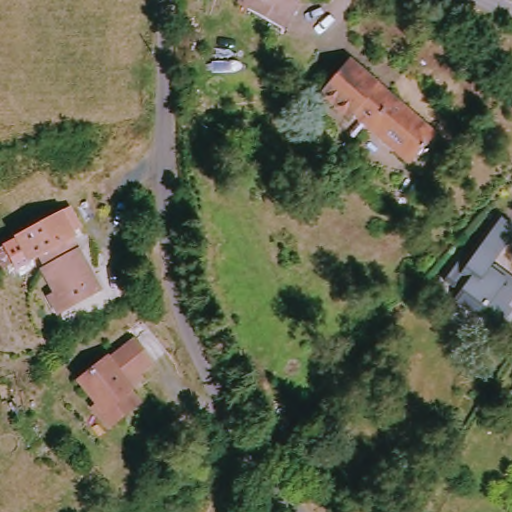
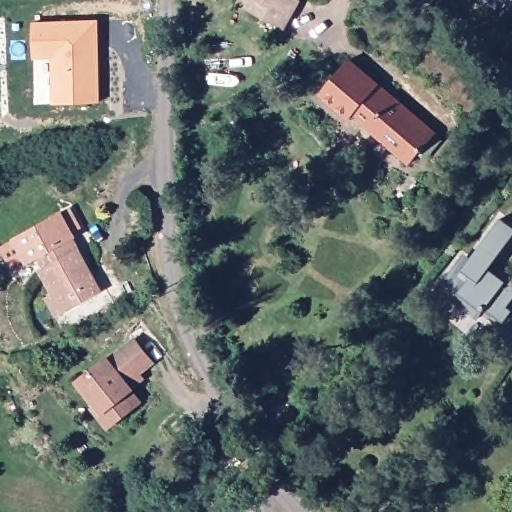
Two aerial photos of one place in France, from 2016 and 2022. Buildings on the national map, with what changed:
unchanged [(279,28),(241,8),(235,5),(238,0),(293,0),(279,28)]
new [(34,59),(34,22),(98,22),(100,102),(53,102),(51,60),(34,59)]
unchanged [(351,122),(319,93),(349,61),(436,136),(411,165),(372,133),(356,118),(351,122)]
unchanged [(55,213),(68,237),(65,239),(93,289),(58,308),(31,258),(22,262),(9,237),(55,213)]
unchanged [(504,277),(512,282),(512,292),(504,306),(510,311),(503,322),(496,316),(493,321),(481,312),(475,320),(454,305),(460,295),(443,284),(452,268),(459,273),(479,241),(494,219),(507,229),(494,251),(485,267),(502,280),(504,277)]
unchanged [(86,409),(91,405),(71,380),(103,357),(104,360),(129,340),(148,364),(136,373),(143,381),(128,393),(135,404),(115,421),(103,430),(86,409)]

